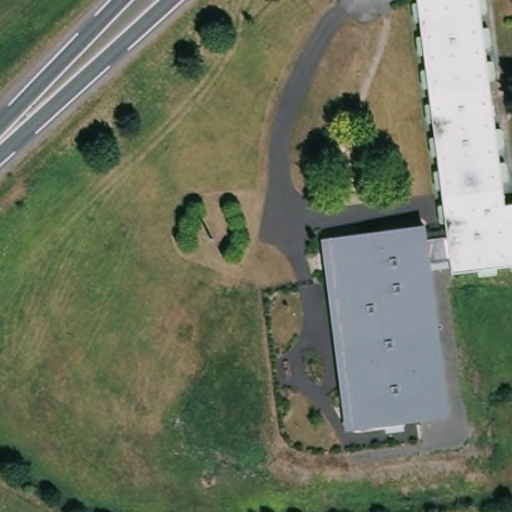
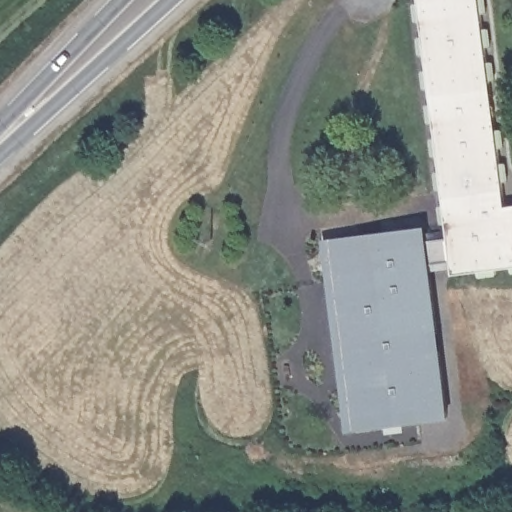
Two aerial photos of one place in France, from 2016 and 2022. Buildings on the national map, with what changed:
unchanged [(493,270),(478,271),(453,273),(452,259),(451,248),(450,245),(448,225),(447,216),(446,207),(444,190),(442,176),(441,159),(440,150),(439,145),(437,126),(435,109),(433,91),(431,75),(430,61),(427,45),(427,44),(425,23),(423,6),(422,0),(482,0),(482,3),(483,16),(486,37),(487,51),(487,54),(489,67),(491,84),(497,137),(498,150),(500,169),(501,174),(502,183),(504,205),(512,204),(512,267),(511,267),(493,270)]
unchanged [(450,245),(451,248),(452,259),(453,268),(432,270),(451,417),(347,432),(321,240),(425,226),(426,232),(448,230),(450,245)]

